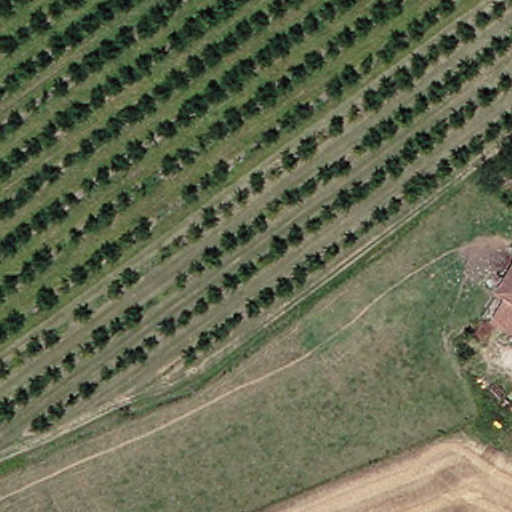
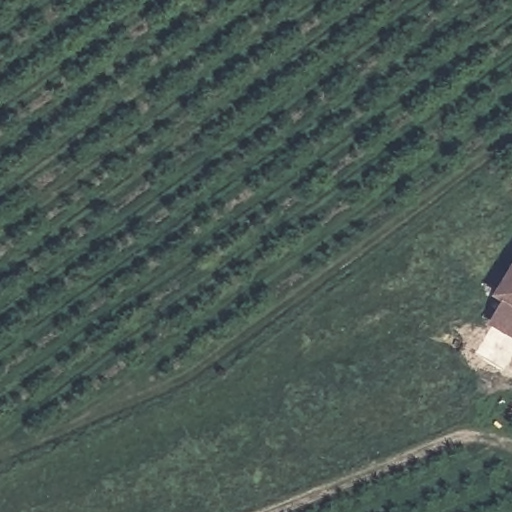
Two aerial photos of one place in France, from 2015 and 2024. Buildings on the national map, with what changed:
unchanged [(512,275),(512,301),(500,294),(512,275)]

